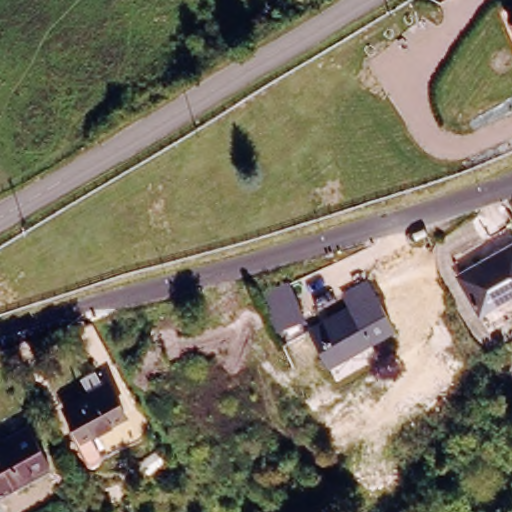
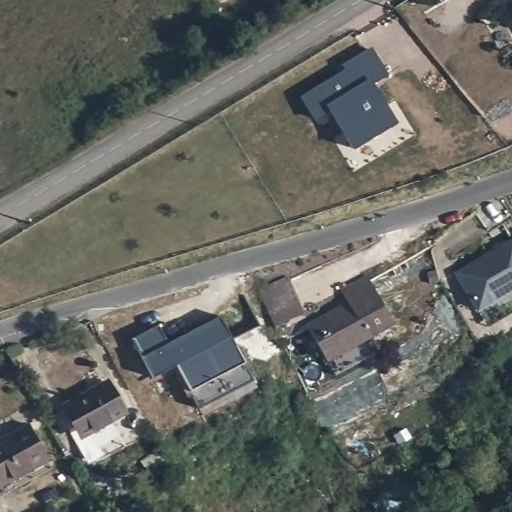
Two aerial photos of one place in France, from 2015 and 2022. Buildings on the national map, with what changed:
unchanged [(505,4),(511,0),(512,0),(512,18),(505,4)]
new [(336,76),(338,79),(347,74),(342,66),(370,49),(385,74),(370,83),(394,122),(351,148),(328,108),(313,117),(301,97),(336,76)]
unchanged [(512,242),(512,290),(476,313),(454,278),(512,242)]
unchanged [(345,303),(336,289),(360,277),(385,323),(362,335),(321,358),(304,326),(345,303)]
unchanged [(299,319),(275,333),(255,296),(280,283),(299,319)]
new [(153,324),(163,342),(215,314),(251,383),(197,412),(174,369),(151,381),(127,338),(153,324)]
unchanged [(102,379),(119,410),(118,410),(75,434),(67,419),(58,404),(102,379)]
unchanged [(0,437),(25,423),(43,457),(50,468),(0,495),(0,437)]

